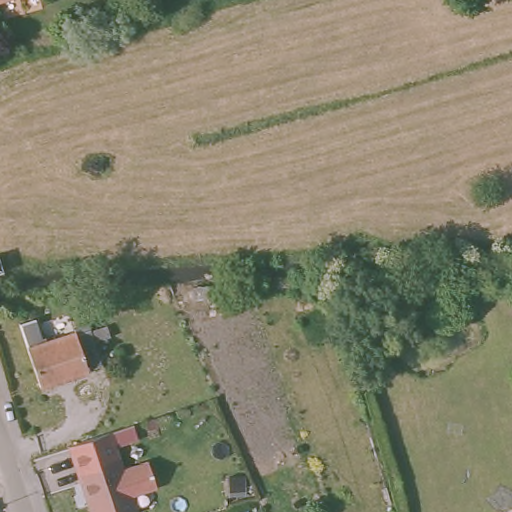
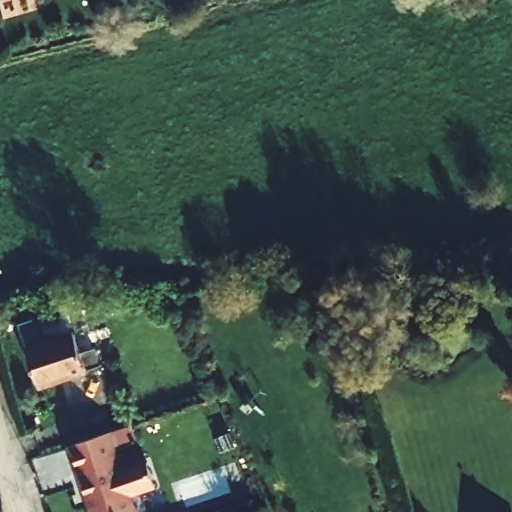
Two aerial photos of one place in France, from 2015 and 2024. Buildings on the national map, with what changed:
unchanged [(0,4),(0,0),(17,0),(0,4)]
unchanged [(0,266),(0,257),(3,265),(0,266)]
unchanged [(40,397),(19,334),(34,329),(40,348),(42,347),(45,352),(74,342),(86,381),(40,397)]
unchanged [(80,472),(71,445),(133,426),(137,440),(114,447),(117,461),(80,472)]
unchanged [(88,502),(80,472),(117,461),(131,505),(133,512),(89,512),(86,503),(88,502)]
unchanged [(148,461),(155,487),(128,496),(120,468),(148,461)]

